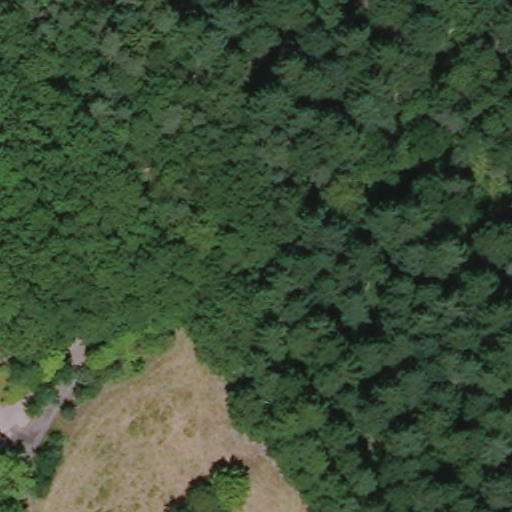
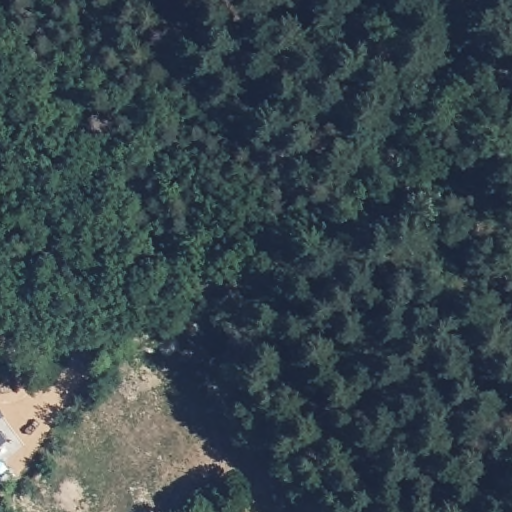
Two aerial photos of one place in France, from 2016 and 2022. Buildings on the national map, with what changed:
unchanged [(0,442),(0,436),(3,440),(0,442)]

